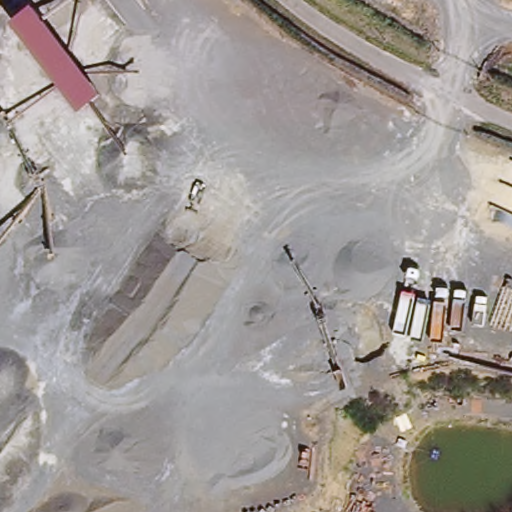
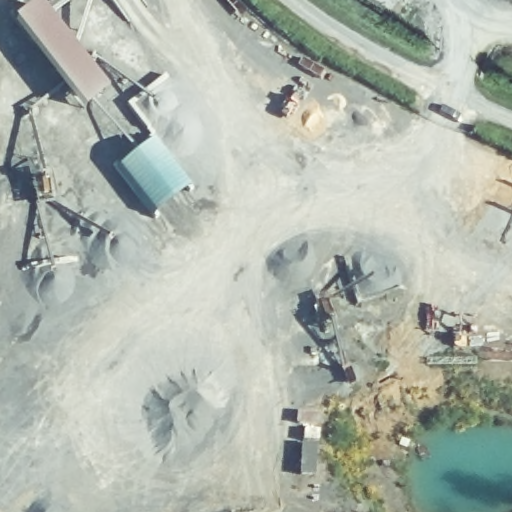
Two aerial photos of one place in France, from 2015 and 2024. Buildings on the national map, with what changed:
unchanged [(105,92),(83,110),(13,22),(35,4),(105,92)]
new [(152,137),(190,186),(151,218),(113,169),(152,137)]
new [(56,205),(36,209),(30,179),(50,175),(56,205)]

